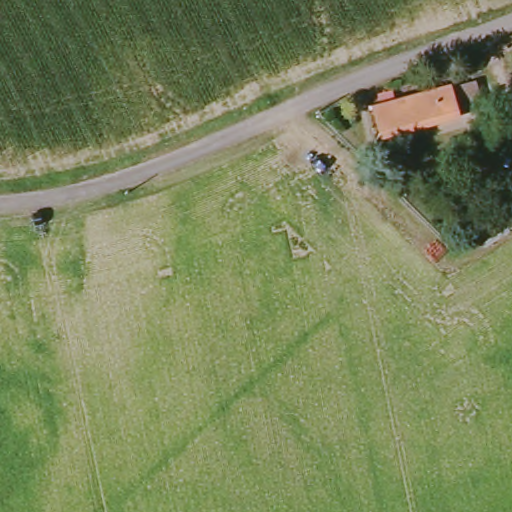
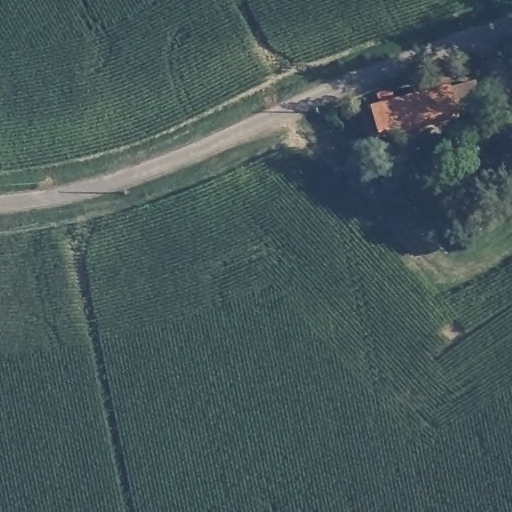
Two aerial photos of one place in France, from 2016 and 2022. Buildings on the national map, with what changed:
unchanged [(455,87),(473,83),(480,110),(463,120),(382,142),(379,106),(455,87)]

